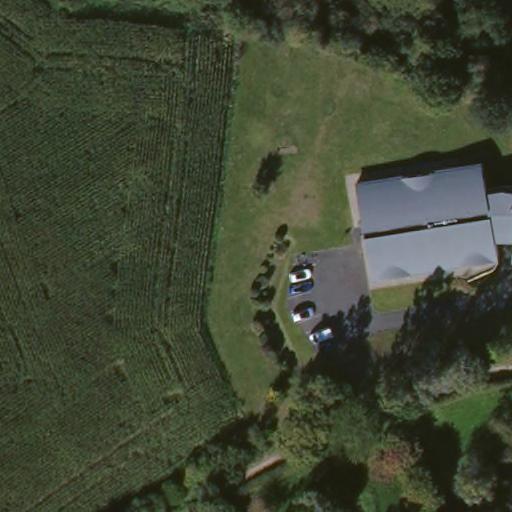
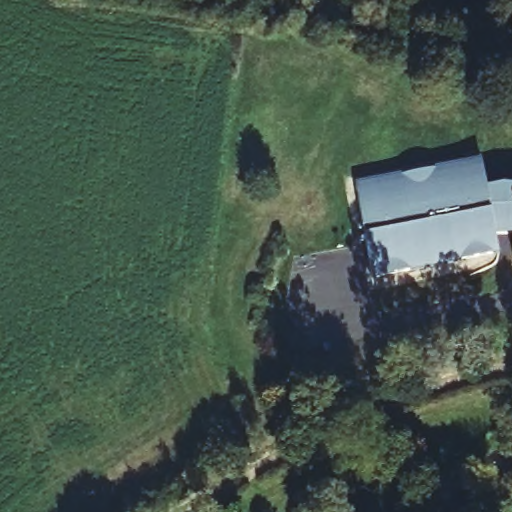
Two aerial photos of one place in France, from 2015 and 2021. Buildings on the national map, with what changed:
unchanged [(512,242),(495,245),(496,259),(370,283),(353,192),(480,170),(485,195),(507,192),(512,192),(512,242)]

